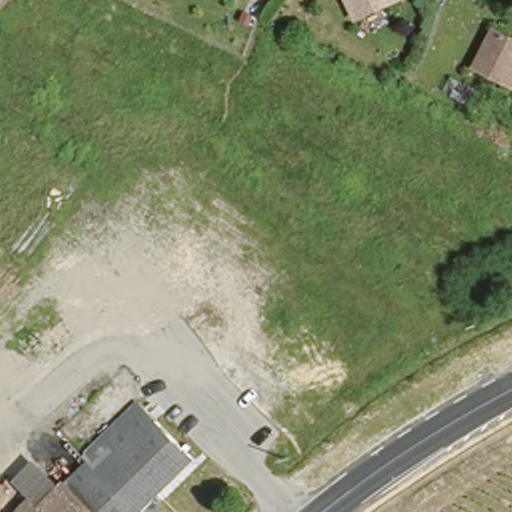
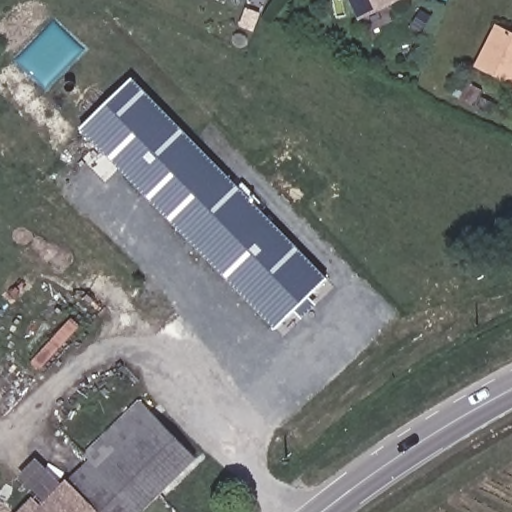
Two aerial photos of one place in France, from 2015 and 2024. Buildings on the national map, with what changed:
unchanged [(355,12),(350,0),(383,0),(355,12)]
unchanged [(471,74),(495,24),(512,32),(512,94),(504,90),(471,74)]
new [(316,305),(301,320),(294,313),(276,330),(79,129),(131,78),(328,279),(310,298),(316,305)]
unchanged [(139,404),(192,462),(143,512),(21,512),(32,501),(60,475),(70,486),(91,466),(82,458),(139,404)]

